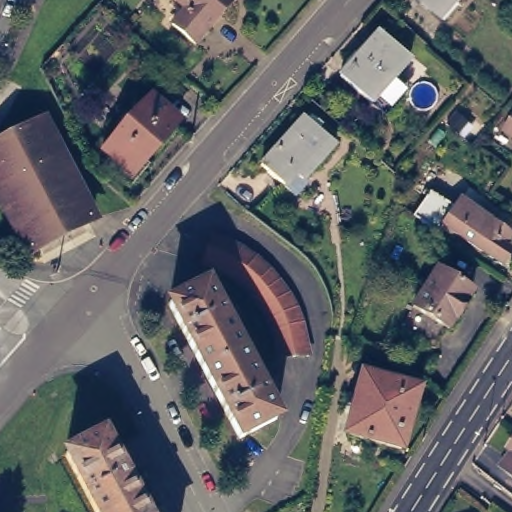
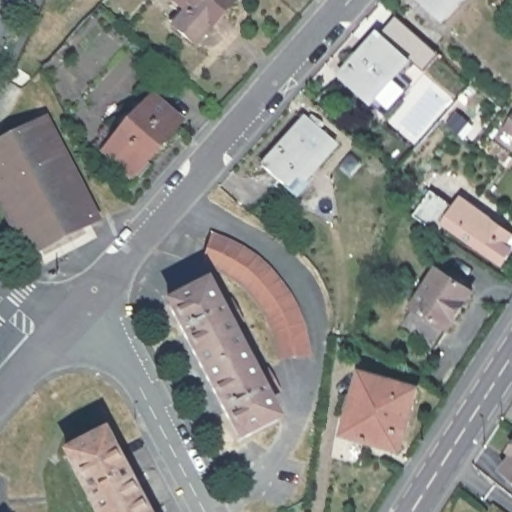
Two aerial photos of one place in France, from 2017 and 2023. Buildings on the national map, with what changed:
unchanged [(213,26),(200,40),(177,20),(185,10),(175,1),(175,0),(235,0),(213,26)]
unchanged [(445,21),(421,0),(462,0),(445,21)]
unchanged [(341,77),(355,60),(351,56),(359,48),(362,52),(380,34),(410,60),(370,104),(341,77)]
unchanged [(155,93),(184,119),(184,120),(139,171),(109,145),(147,102),(155,93)]
unchanged [(302,177),(295,172),(285,182),(262,162),(305,112),(335,140),(302,177)]
unchanged [(502,129),(512,114),(512,135),(502,129)]
unchanged [(92,215),(30,247),(0,190),(0,138),(41,117),(92,215)]
unchanged [(436,196),(448,205),(451,201),(467,205),(512,237),(512,262),(507,270),(450,230),(444,239),(419,221),(436,196)]
unchanged [(307,321),(314,352),(284,353),(279,331),(274,318),(267,307),(260,296),(252,286),(242,277),(231,269),(220,263),(208,258),(216,230),(220,231),(230,236),(234,237),(245,242),(249,245),(259,252),(262,254),(270,262),(275,266),(282,275),(284,277),(291,287),(294,292),(300,302),(302,306),(305,317),(307,321)]
unchanged [(437,269),(449,277),(452,271),(459,276),(455,281),(472,292),(448,330),(413,307),(437,269)]
unchanged [(272,391),(259,398),(271,421),(234,440),(164,305),(200,287),(212,309),(225,302),(235,322),(222,328),(249,378),(262,372),(272,391)]
unchanged [(350,430),(356,407),(352,406),(362,369),(417,385),(400,445),(350,430)]
unchanged [(139,512),(93,512),(60,450),(97,431),(139,512)]
unchanged [(509,471),(512,467),(512,473),(509,471)]

